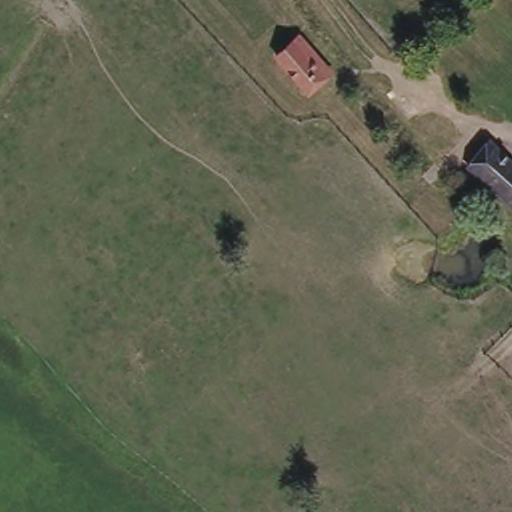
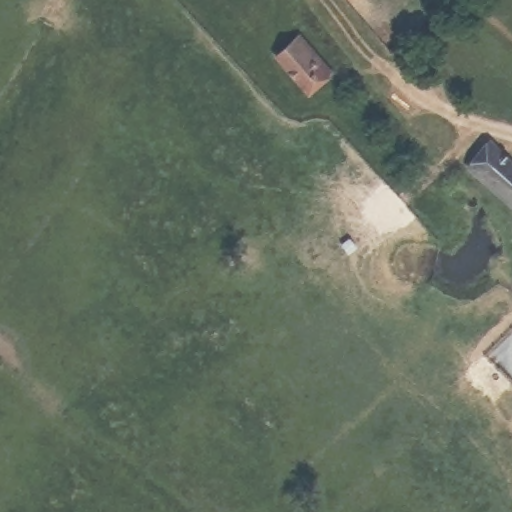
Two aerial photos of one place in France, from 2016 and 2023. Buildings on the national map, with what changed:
unchanged [(319,72),(316,75),(321,82),(306,95),(279,60),(298,45),(319,72)]
unchanged [(486,155),(501,167),(505,162),(512,167),(512,212),(468,178),(486,155)]

